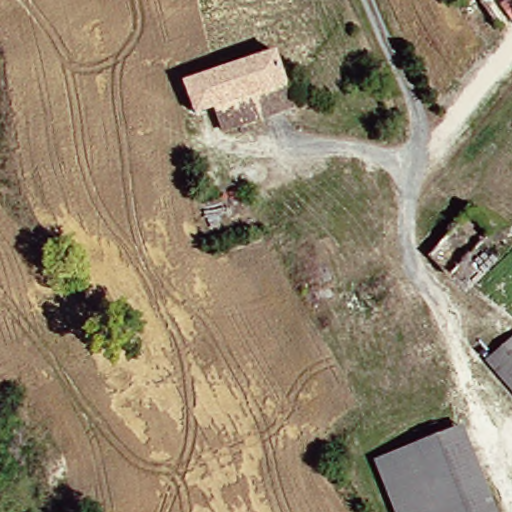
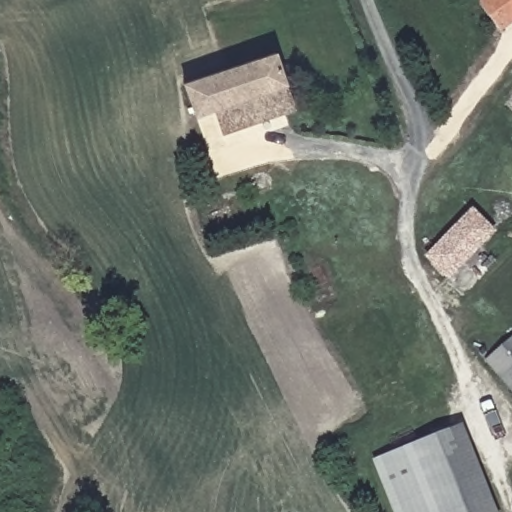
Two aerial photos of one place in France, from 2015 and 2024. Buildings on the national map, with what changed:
unchanged [(487,10),(475,0),(498,0),(487,10)]
unchanged [(301,113),(230,131),(224,109),(204,114),(197,80),(286,55),(301,113)]
new [(427,256),(474,211),(497,232),(451,280),(427,256)]
unchanged [(495,360),(512,346),(512,381),(495,360)]
unchanged [(506,396),(512,391),(512,403),(506,396)]
unchanged [(424,447),(472,430),(500,512),(403,512),(402,510),(441,498),(424,447)]
unchanged [(386,461),(424,447),(441,498),(402,510),(386,461)]

